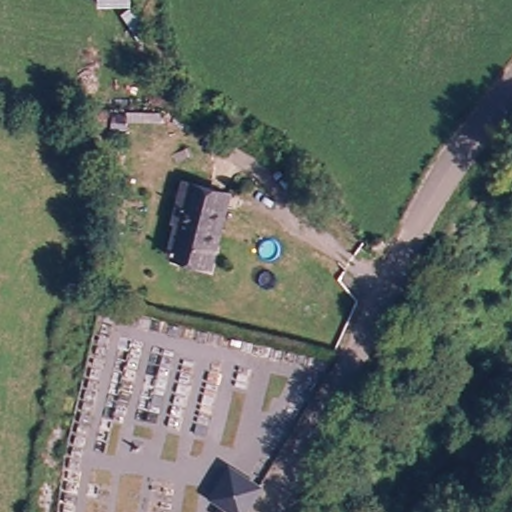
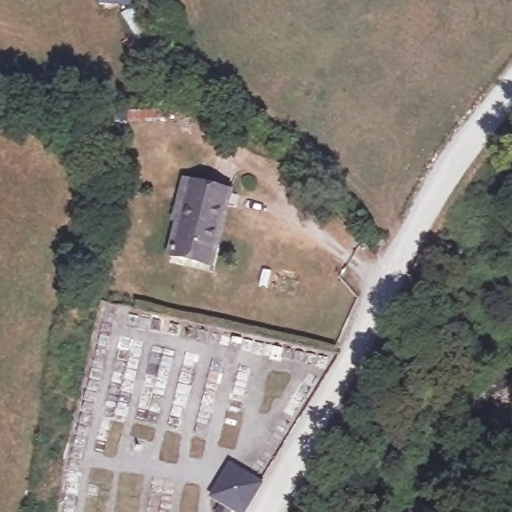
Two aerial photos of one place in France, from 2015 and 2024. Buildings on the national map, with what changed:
unchanged [(105,0),(127,0),(126,3),(105,0)]
unchanged [(197,263),(175,256),(185,222),(175,220),(186,181),(211,188),(232,194),(230,204),(215,246),(210,267),(197,263)]
unchanged [(245,512),(224,512),(211,506),(229,470),(264,485),(245,512)]

